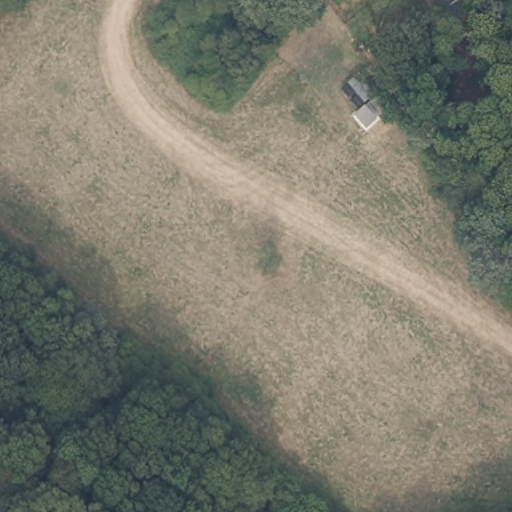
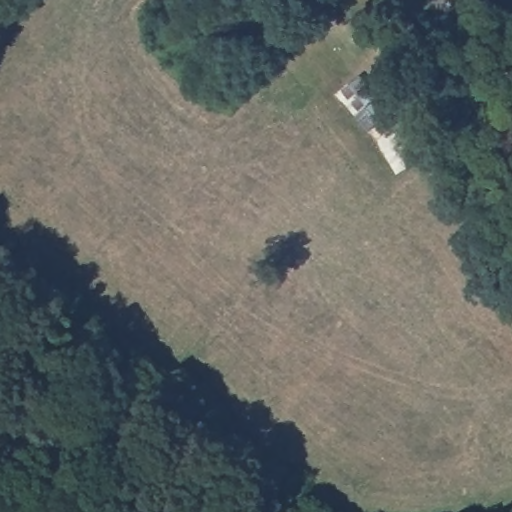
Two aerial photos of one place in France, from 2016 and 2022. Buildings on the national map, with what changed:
unchanged [(486,22),(460,41),(441,16),(461,1),(471,2),(486,22)]

